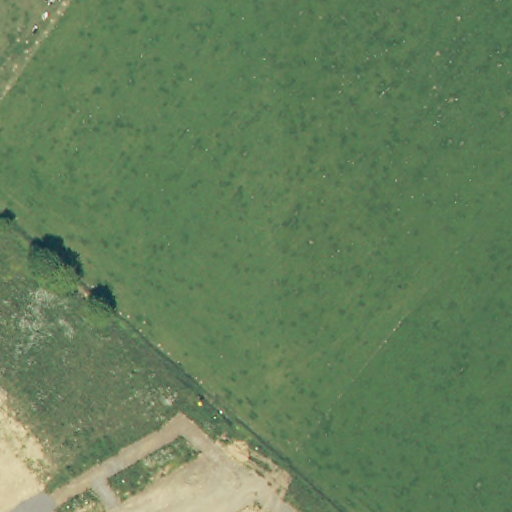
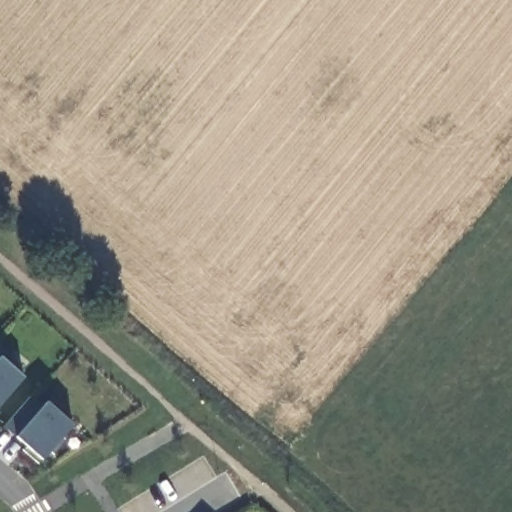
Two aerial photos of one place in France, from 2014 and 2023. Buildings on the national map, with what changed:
new [(7,353),(3,360),(24,379),(0,406),(0,347),(7,353)]
new [(41,409),(45,405),(72,427),(64,437),(66,441),(52,456),(49,453),(43,461),(15,436),(4,428),(29,398),(41,409)]

